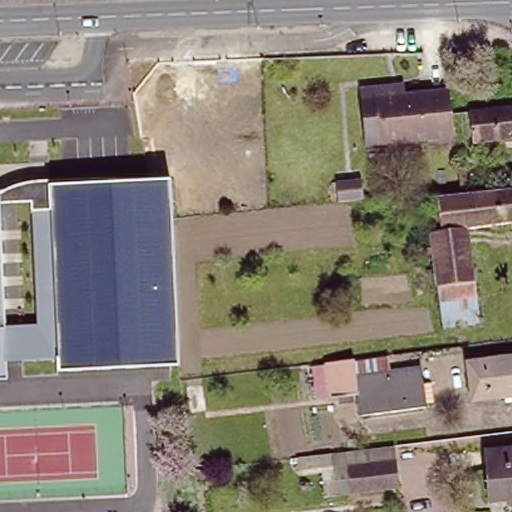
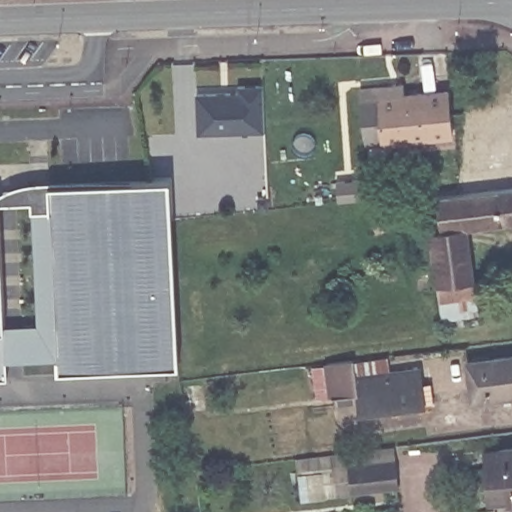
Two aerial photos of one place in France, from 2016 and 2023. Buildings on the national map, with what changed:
new [(235,91),(235,85),(259,84),(260,130),(197,133),(195,93),(235,91)]
unchanged [(396,141),(395,135),(378,137),(373,90),(390,89),(415,86),(415,97),(466,92),(467,107),(468,114),(470,135),(396,141)]
unchanged [(470,139),(470,135),(468,114),(467,107),(512,103),(512,135),(470,139)]
unchanged [(440,259),(432,260),(431,251),(438,251),(434,212),(441,211),(440,203),(455,201),(455,190),(451,190),(450,174),(458,173),(465,172),(467,200),(512,194),(512,228),(471,233),(478,284),(480,303),(445,307),(443,289),(440,259)]
unchanged [(353,177),(355,198),(330,200),(327,180),(353,177)]
unchanged [(108,183),(171,180),(174,234),(176,292),(180,365),(54,370),(53,360),(9,362),(10,378),(0,378),(0,201),(2,201),(6,324),(40,324),(38,264),(37,214),(53,212),(53,185),(108,183)]
unchanged [(469,394),(466,362),(465,357),(512,352),(512,389),(469,394)]
unchanged [(358,374),(421,367),(422,373),(347,383),(347,391),(333,393),(330,360),(356,356),(358,374)]
unchanged [(347,383),(422,373),(425,406),(363,413),(360,390),(347,391),(347,383)]
unchanged [(512,447),(512,498),(491,500),(487,449),(512,447)]
unchanged [(347,466),(371,464),(391,462),(393,486),(373,488),(350,490),(347,466)]

